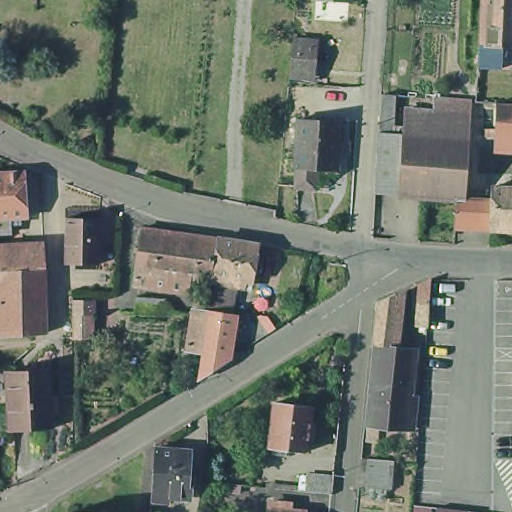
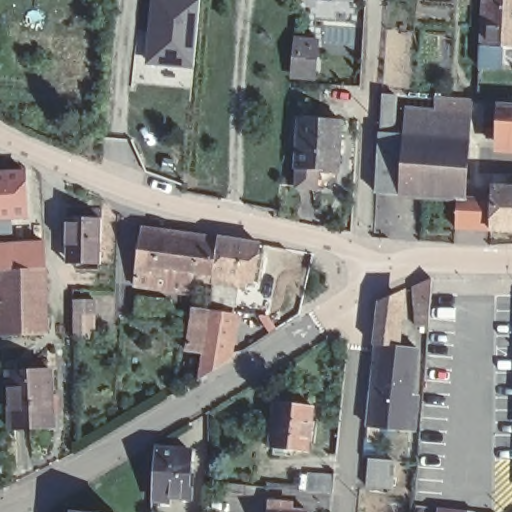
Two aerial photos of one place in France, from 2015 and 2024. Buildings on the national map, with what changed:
new [(146,66),(152,0),(200,0),(194,69),(146,66)]
unchanged [(512,0),(512,42),(510,42),(510,57),(485,57),(487,0),(512,0)]
unchanged [(290,47),(309,48),(307,80),(287,78),(290,47)]
demolished [(332,73),(357,75),(355,95),(330,93),(332,73)]
unchanged [(384,133),(386,95),(400,96),(397,133),(408,134),(410,109),(432,111),(426,196),(381,192),(384,133)]
unchanged [(439,111),(440,98),(475,101),(473,139),(437,136),(439,111)]
unchanged [(500,129),(501,102),(512,103),(512,139),(500,138),(500,136),(490,136),(490,128),(500,129)]
unchanged [(302,158),(301,158),(304,108),(344,111),(343,131),(345,131),(345,141),(342,141),(341,160),(320,159),(319,177),(300,176),(302,158)]
unchanged [(439,111),(437,136),(473,139),(470,199),(496,201),(497,186),(512,187),(512,230),(465,228),(467,199),(426,196),(432,111),(439,111)]
unchanged [(27,166),(30,211),(13,212),(14,227),(0,228),(0,168),(27,166)]
unchanged [(105,217),(105,252),(76,252),(76,265),(70,265),(70,218),(105,217)]
unchanged [(194,307),(212,310),(212,305),(214,277),(190,273),(188,286),(160,282),(138,279),(145,223),(220,232),(215,269),(215,275),(230,277),(229,308),(235,309),(227,357),(201,374),(205,346),(189,343),(194,307)]
unchanged [(220,232),(262,239),(257,277),(215,269),(220,232)]
unchanged [(47,243),(49,262),(0,265),(0,246),(47,243)]
unchanged [(47,263),(48,327),(5,330),(2,266),(47,263)]
unchanged [(430,277),(427,327),(413,326),(412,285),(430,277)]
unchanged [(379,339),(377,339),(380,297),(400,288),(395,341),(420,343),(412,425),(370,420),(379,339)]
unchanged [(137,296),(164,299),(162,315),(135,312),(137,296)]
unchanged [(98,299),(97,314),(95,314),(95,338),(75,338),(75,330),(75,300),(98,299)]
unchanged [(240,343),(242,347),(239,349),(237,345),(240,343)]
unchanged [(54,358),(58,416),(15,419),(12,361),(54,358)]
unchanged [(278,398),(315,401),(314,416),(319,417),(317,436),(311,435),(310,446),(295,444),(294,450),(277,448),(278,443),(274,442),(278,398)]
unchanged [(157,471),(157,468),(158,463),(158,458),(159,438),(194,440),(192,465),(195,466),(194,487),(174,486),(174,491),(155,490),(157,471)]
unchanged [(394,493),(364,491),(367,454),(396,457),(394,493)]
unchanged [(225,483),(240,485),(239,494),(223,493),(225,483)]
unchanged [(272,503),(274,503),(274,497),(289,498),(288,504),(310,506),(310,512),(271,512),(272,503)]
unchanged [(77,505),(122,511),(122,512),(76,512),(77,505)]
unchanged [(468,512),(437,512),(437,506),(467,508),(468,512)]

